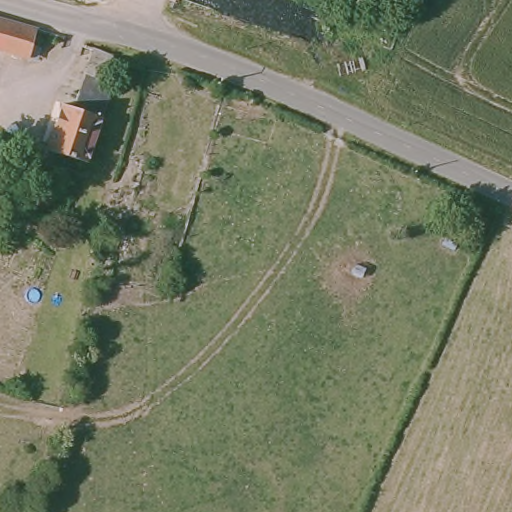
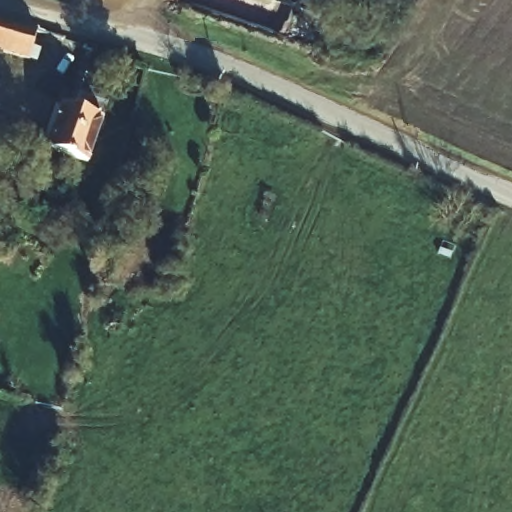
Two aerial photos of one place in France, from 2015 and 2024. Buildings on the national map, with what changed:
unchanged [(26,54),(0,48),(0,16),(32,25),(26,54)]
unchanged [(46,146),(61,106),(73,109),(93,51),(113,59),(105,76),(117,81),(87,161),(46,146)]

